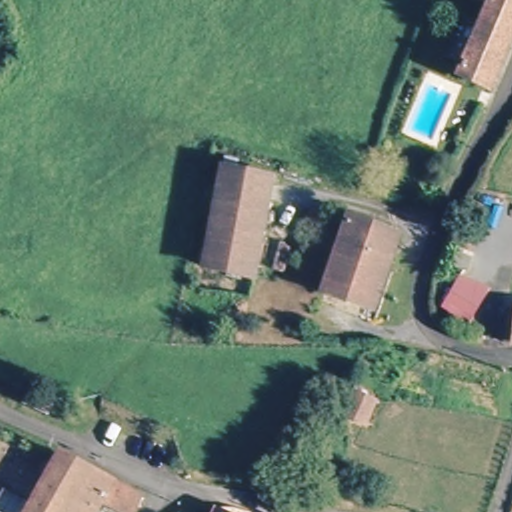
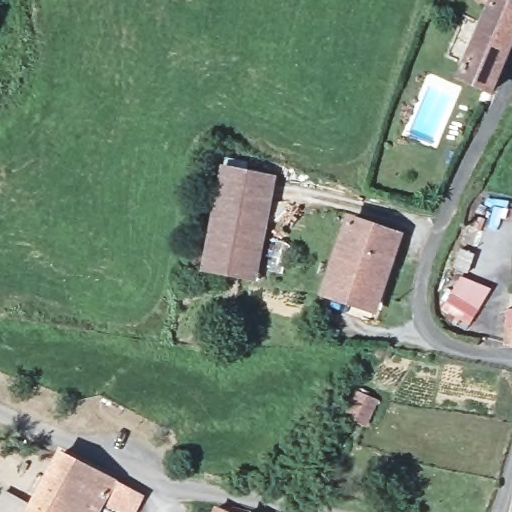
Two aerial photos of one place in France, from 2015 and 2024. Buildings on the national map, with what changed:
unchanged [(468,0),(503,0),(501,4),(512,9),(512,40),(490,93),(457,76),(482,13),(465,6),(468,0)]
unchanged [(276,177),(254,275),(205,263),(229,165),(276,177)]
unchanged [(402,240),(375,315),(329,297),(356,223),(402,240)]
unchanged [(467,279),(494,293),(472,325),(448,310),(467,279)]
unchanged [(504,322),(512,322),(512,338),(502,337),(504,322)]
unchanged [(142,512),(138,512),(110,499),(104,512),(32,512),(64,449),(152,494),(142,512)]
unchanged [(217,506),(234,512),(215,512),(217,506)]

